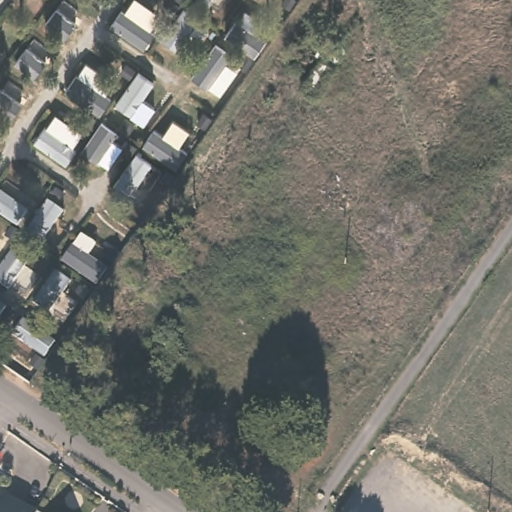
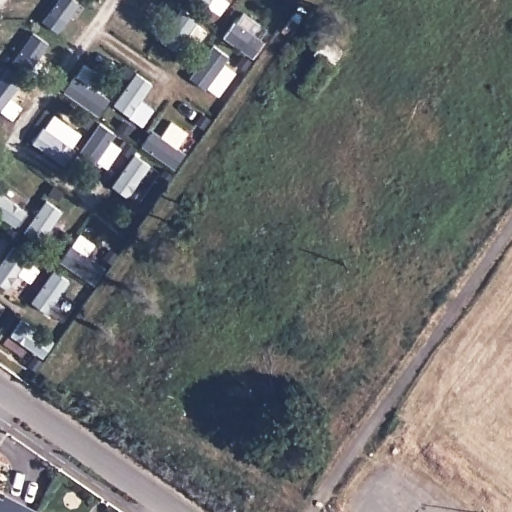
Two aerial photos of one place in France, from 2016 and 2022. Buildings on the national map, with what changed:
unchanged [(355,39),(343,56),(326,44),(330,36),(318,28),(324,18),(355,39)]
unchanged [(342,59),(322,87),(311,79),(331,51),(342,59)]
unchanged [(24,493),(42,503),(37,512),(0,512),(0,486),(21,498),(24,493)]

